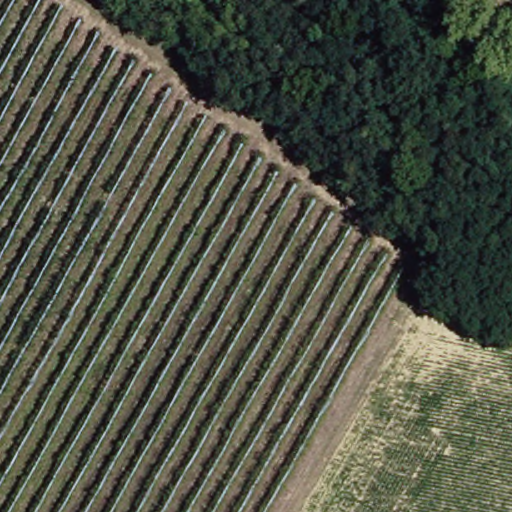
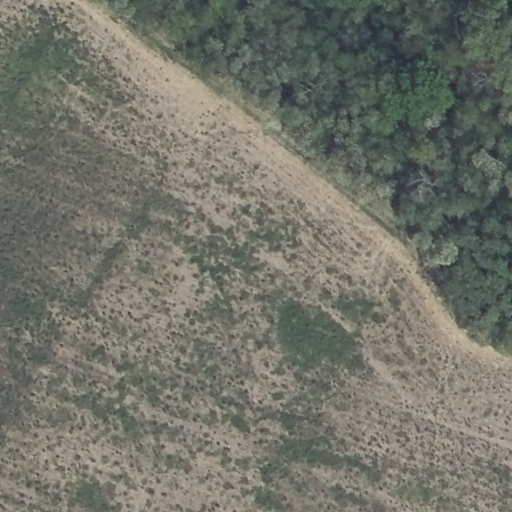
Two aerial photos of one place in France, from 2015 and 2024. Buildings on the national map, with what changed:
unchanged [(259,512),(0,512),(0,0),(53,0),(169,79),(397,274),(259,512)]

